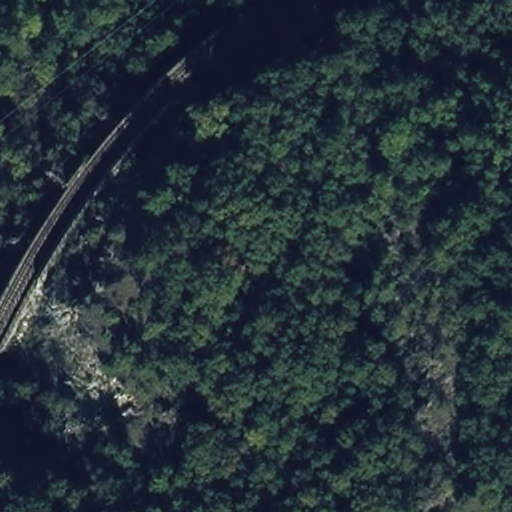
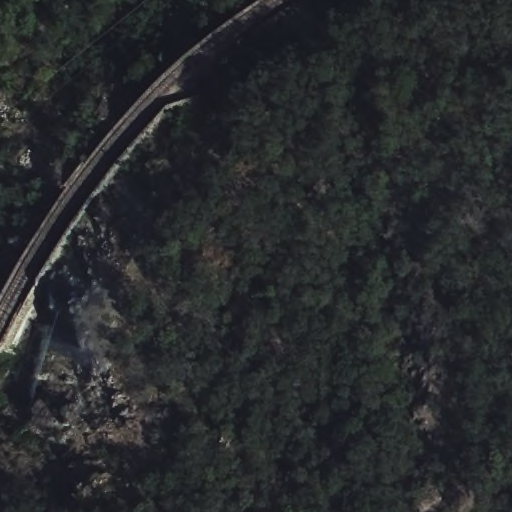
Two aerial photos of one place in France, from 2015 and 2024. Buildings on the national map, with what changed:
[]

